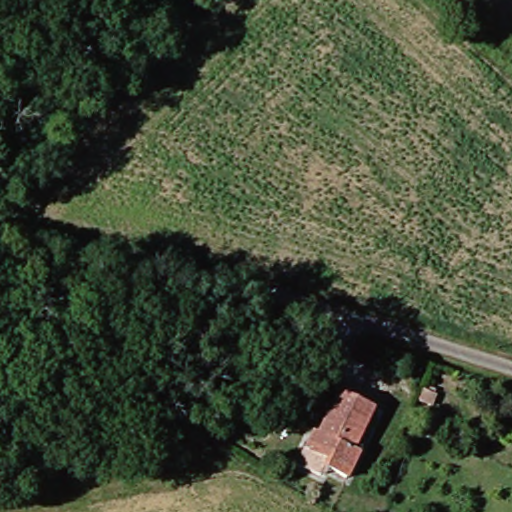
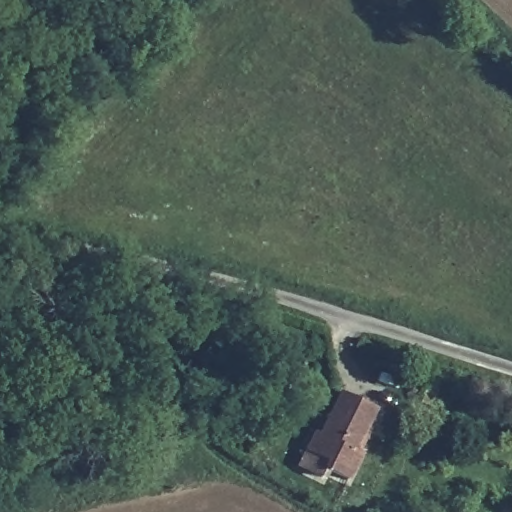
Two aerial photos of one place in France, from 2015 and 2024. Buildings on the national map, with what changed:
unchanged [(343,398),(380,415),(370,440),(376,443),(357,488),(333,476),(335,471),(317,460),(343,398)]

